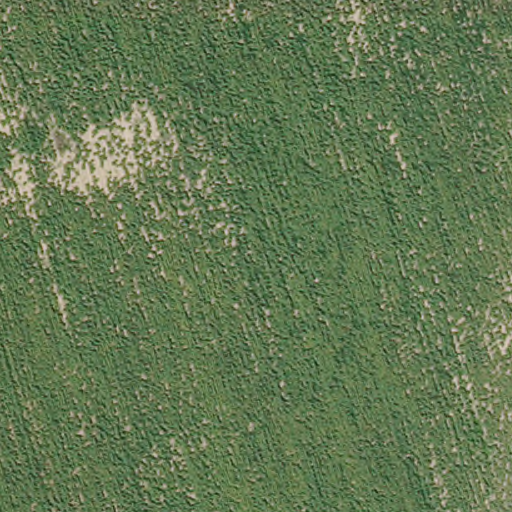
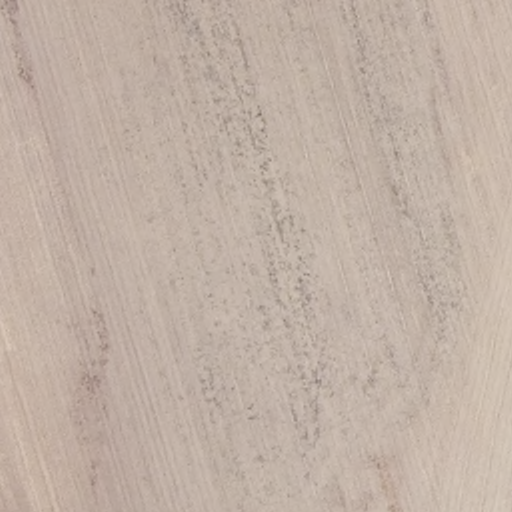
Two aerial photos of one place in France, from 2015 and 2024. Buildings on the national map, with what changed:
[]

